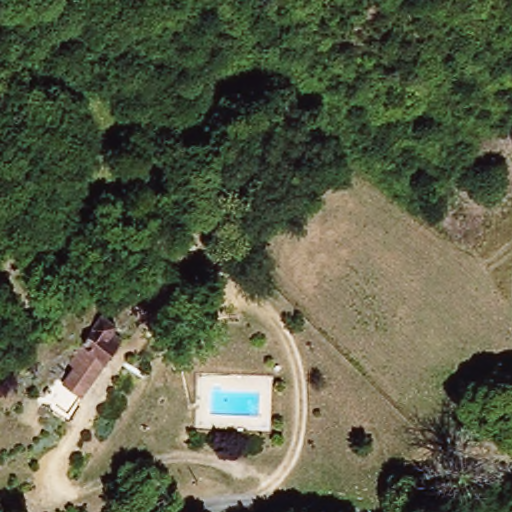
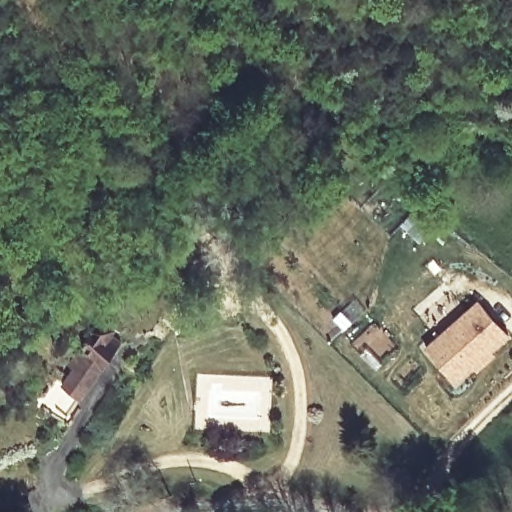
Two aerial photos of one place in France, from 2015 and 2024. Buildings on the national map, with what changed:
unchanged [(177,324),(148,313),(162,277),(189,286),(177,324)]
new [(477,369),(473,365),(455,381),(425,348),(477,301),(507,334),(490,350),(493,354),(477,369)]
unchanged [(115,322),(110,331),(123,340),(85,397),(67,386),(77,371),(70,366),(102,314),(115,322)]

